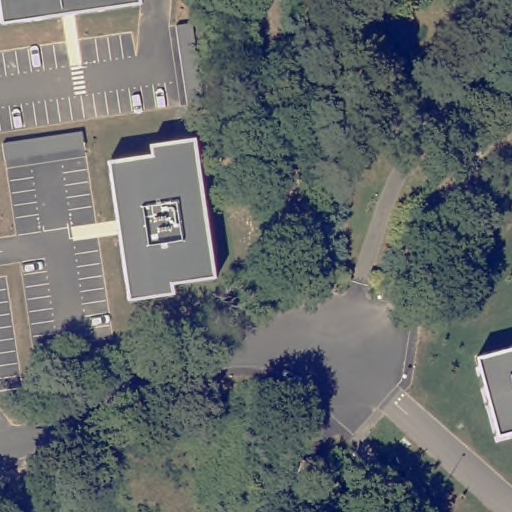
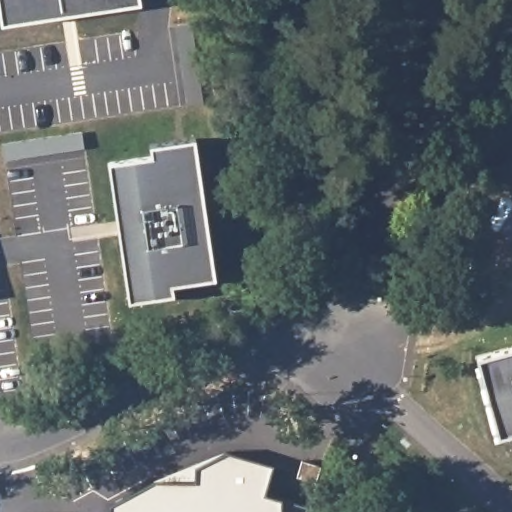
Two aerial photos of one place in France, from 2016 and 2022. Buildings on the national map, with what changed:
unchanged [(0,0),(140,0),(140,2),(4,22),(0,3),(0,0)]
new [(82,131),(85,148),(5,160),(2,143),(82,131)]
unchanged [(152,156),(151,145),(195,139),(215,276),(171,283),(173,293),(131,300),(110,162),(152,156)]
unchanged [(498,439),(475,353),(512,344),(512,436),(498,439)]
new [(153,481),(195,482),(196,468),(226,452),(273,465),(265,494),(282,499),(281,512),(109,512),(110,505),(153,481)]

